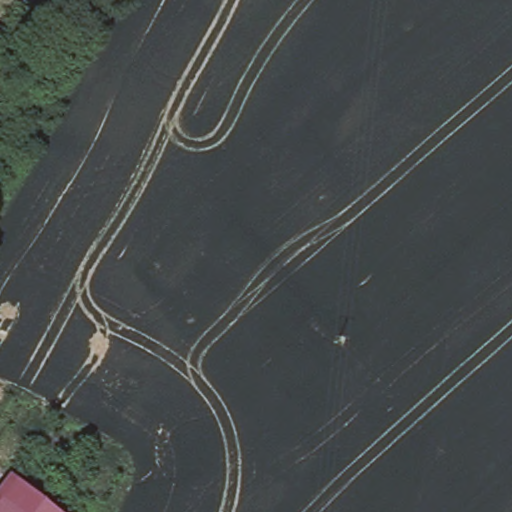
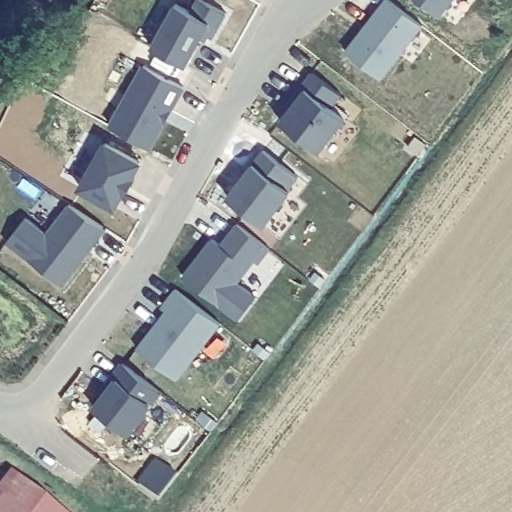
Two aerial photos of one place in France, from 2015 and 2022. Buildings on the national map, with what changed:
new [(186,8),(194,0),(202,0),(228,14),(220,28),(211,22),(187,65),(150,46),(174,3),(186,8)]
new [(423,25),(383,79),(344,50),(382,0),(389,0),(423,25)]
new [(435,10),(421,0),(442,0),(435,10)]
new [(184,86),(151,147),(110,126),(144,65),(184,86)]
new [(339,90),(328,102),(347,119),(322,152),(280,120),(286,113),(281,110),(310,71),(339,90)]
new [(141,162),(133,176),(134,177),(127,194),(123,192),(116,206),(81,187),(105,142),(141,162)]
new [(298,176),(288,188),(291,191),(265,225),(227,196),(252,162),(262,150),(298,176)]
new [(109,229),(65,285),(6,242),(26,215),(46,231),(68,204),(109,229)]
new [(270,247),(259,263),(255,260),(239,282),(257,297),(239,320),(182,275),(212,236),(221,243),(236,222),(270,247)]
new [(222,324),(179,378),(135,347),(166,310),(161,306),(175,288),(222,324)]
new [(162,389),(151,402),(154,404),(130,434),(93,406),(106,390),(101,387),(123,361),(162,389)]
new [(170,465),(175,475),(159,496),(137,481),(155,458),(170,465)]
unchanged [(59,512),(0,512),(0,493),(13,476),(59,512)]

